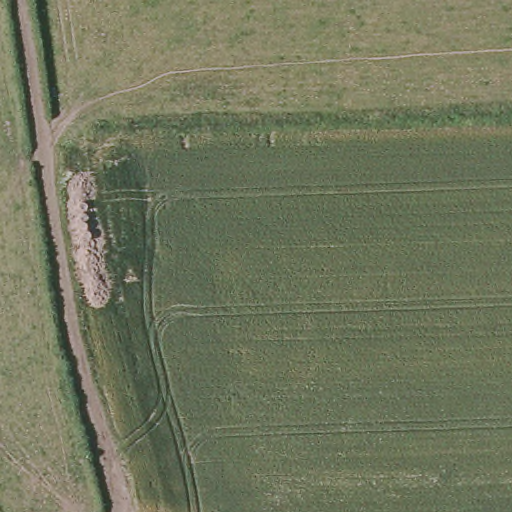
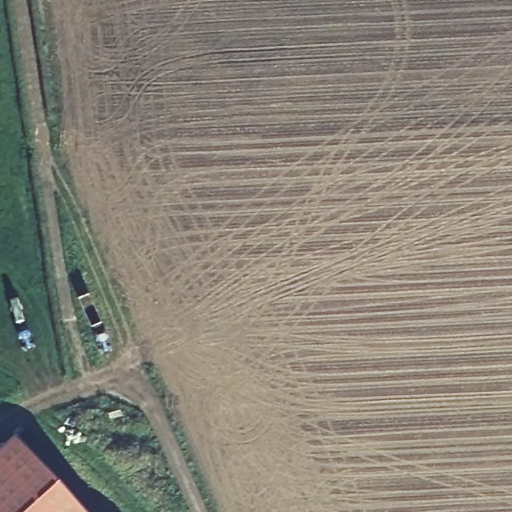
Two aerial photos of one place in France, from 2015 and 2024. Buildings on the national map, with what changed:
new [(15,437),(83,512),(0,512),(0,451),(15,437)]

